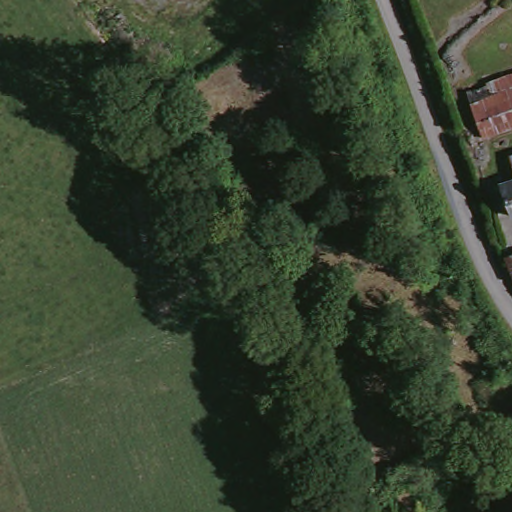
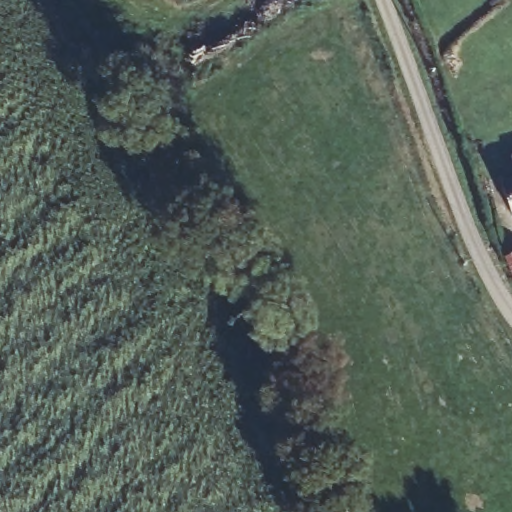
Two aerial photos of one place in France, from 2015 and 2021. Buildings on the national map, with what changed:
unchanged [(177,0),(178,0),(178,1),(177,0)]
demolished [(462,93),(512,75),(512,138),(479,151),(462,93)]
unchanged [(512,177),(506,164),(512,161),(512,177)]
unchanged [(492,196),(512,187),(512,224),(508,226),(492,196)]
unchanged [(512,270),(508,263),(512,260),(512,270)]

